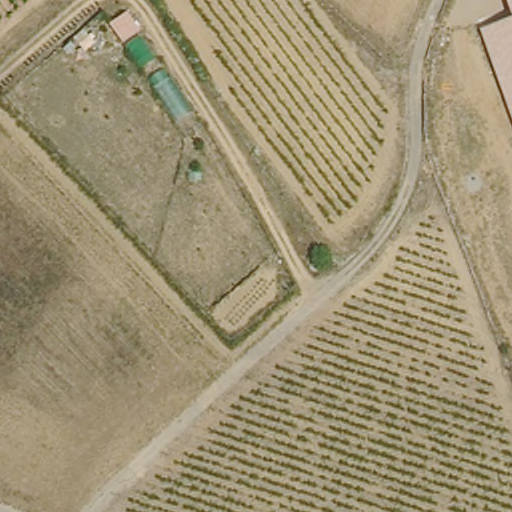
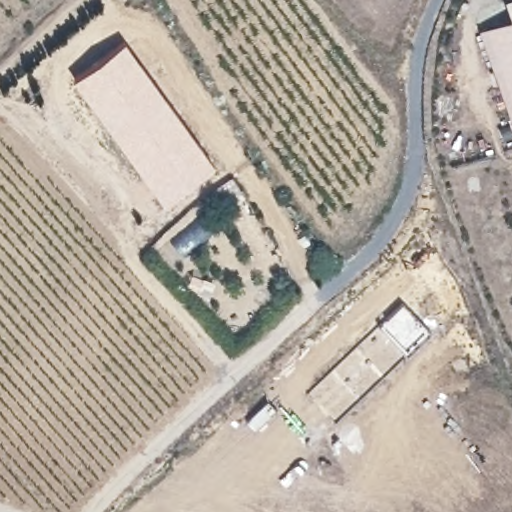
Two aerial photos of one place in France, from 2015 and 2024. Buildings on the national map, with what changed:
unchanged [(510,19),(504,0),(512,0),(512,122),(479,30),(510,19)]
new [(125,43),(214,165),(163,203),(73,79),(125,43)]

